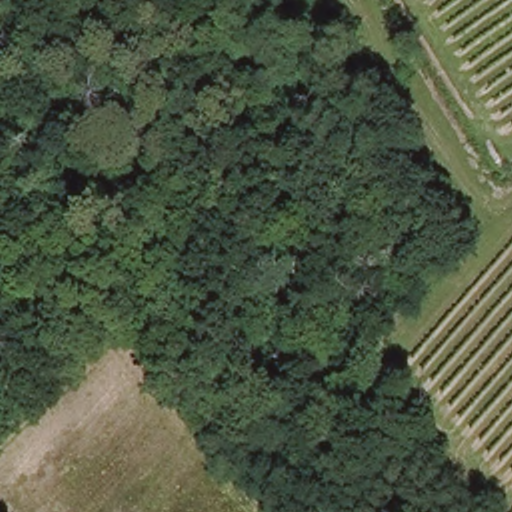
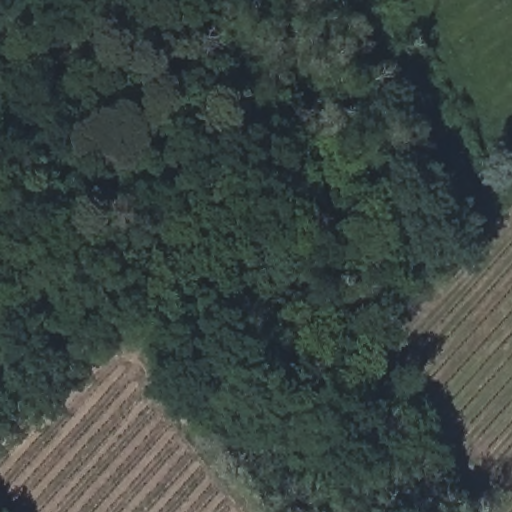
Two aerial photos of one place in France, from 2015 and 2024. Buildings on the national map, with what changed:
[]

